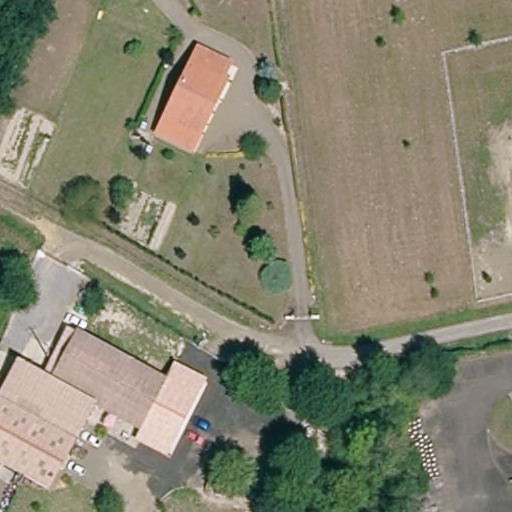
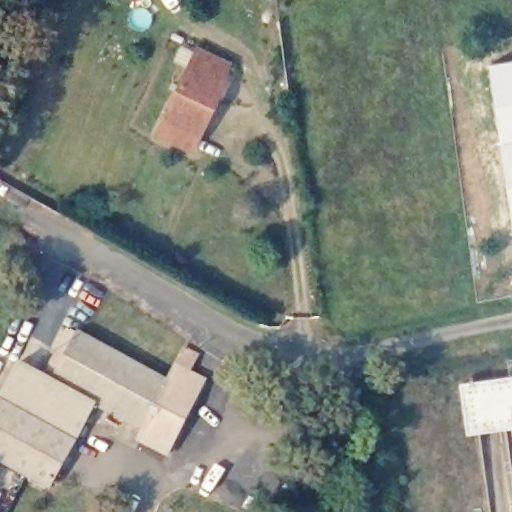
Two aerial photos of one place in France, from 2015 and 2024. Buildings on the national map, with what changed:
unchanged [(189,151),(158,137),(199,50),(230,64),(225,77),(229,80),(205,138),(197,155),(189,151)]
new [(489,64),(512,61),(512,214),(489,64)]
unchanged [(171,384),(145,432),(56,380),(81,334),(171,384)]
new [(468,434),(462,384),(510,376),(507,361),(512,360),(512,427),(468,434)]
unchanged [(0,466),(0,396),(17,363),(53,383),(95,405),(48,492),(0,466)]

